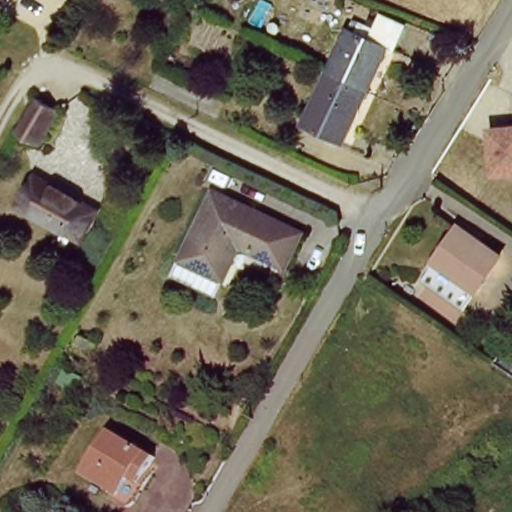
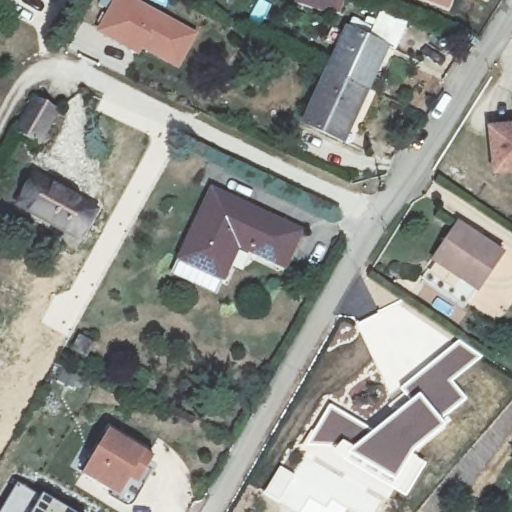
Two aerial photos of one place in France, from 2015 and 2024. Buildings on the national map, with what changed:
new [(141,50),(140,56),(96,32),(114,0),(130,0),(196,35),(177,69),(141,50)]
new [(337,15),(291,0),(344,0),(337,15)]
new [(449,11),(420,0),(453,0),(449,11)]
unchanged [(345,26),(393,45),(349,143),(302,124),(345,26)]
unchanged [(60,111),(43,142),(23,130),(20,127),(36,98),(40,100),(60,111)]
unchanged [(512,182),(502,183),(493,140),(512,136),(512,182)]
unchanged [(81,238),(73,233),(15,202),(33,171),(91,200),(100,205),(81,238)]
unchanged [(280,268),(242,249),(225,281),(182,262),(210,206),(217,191),(231,198),(299,230),(280,268)]
unchanged [(461,218),(507,241),(477,302),(430,280),(461,218)]
new [(400,300),(420,317),(417,322),(446,336),(443,340),(445,343),(397,389),(393,384),(390,386),(356,323),(400,300)]
new [(445,343),(443,340),(446,336),(453,341),(456,337),(482,356),(454,381),(467,398),(442,420),(416,393),(406,400),(397,389),(445,343)]
new [(351,448),(372,428),(393,410),(399,405),(406,400),(416,393),(442,420),(446,425),(413,454),(427,462),(406,498),(345,457),(351,448)]
new [(329,401),(372,428),(351,448),(341,440),(332,451),(312,447),(305,444),(329,401)]
unchanged [(109,429),(159,458),(138,492),(130,486),(121,499),(85,476),(109,429)]
new [(280,466),(295,475),(280,502),(263,492),(280,466)]
new [(43,498),(44,495),(72,512),(2,512),(18,484),(43,498)]

